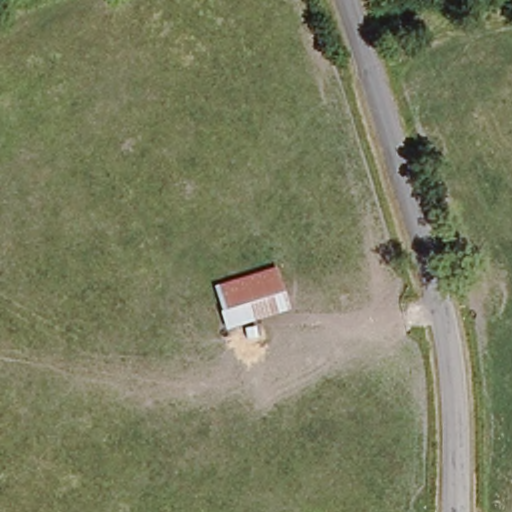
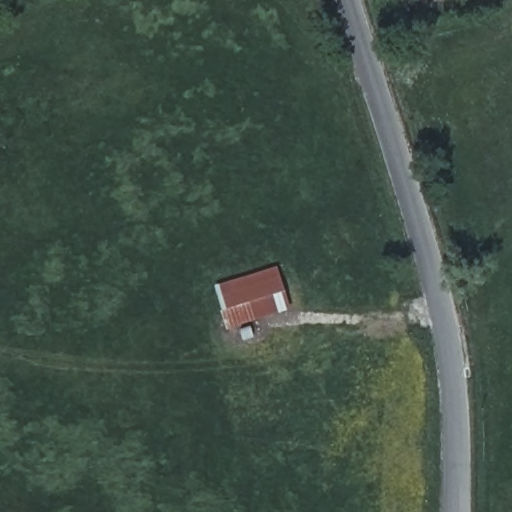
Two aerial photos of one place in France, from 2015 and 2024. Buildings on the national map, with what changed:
unchanged [(287,302),(226,322),(215,287),(276,268),(287,302)]

